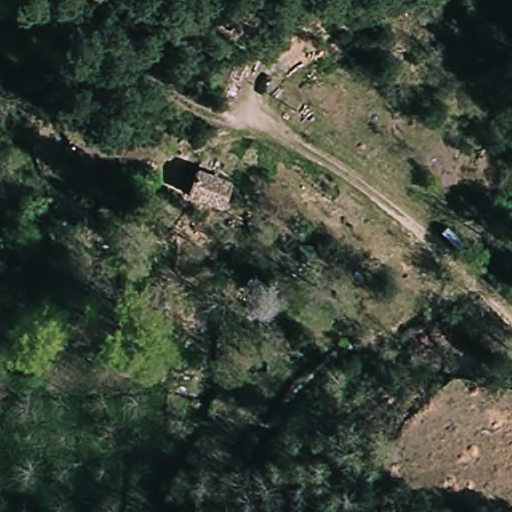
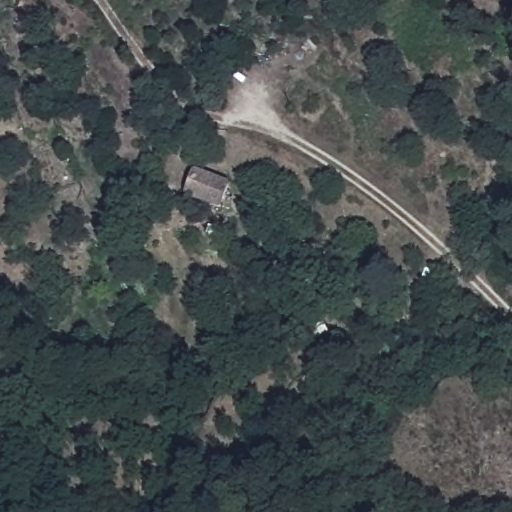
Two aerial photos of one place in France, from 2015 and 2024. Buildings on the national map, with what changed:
unchanged [(182,205),(194,172),(231,184),(220,218),(182,205)]

